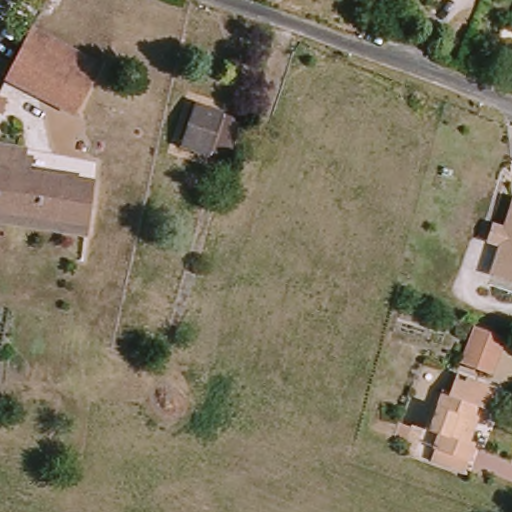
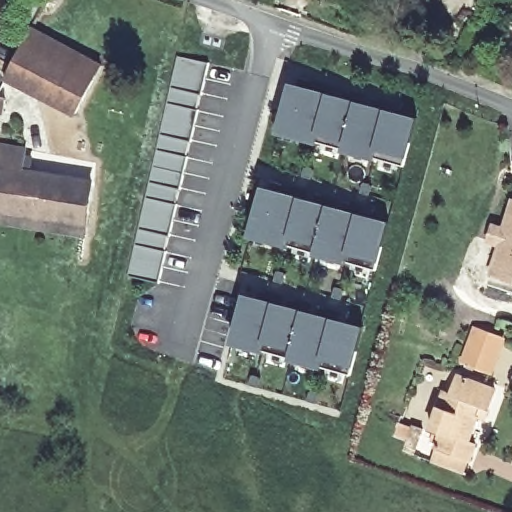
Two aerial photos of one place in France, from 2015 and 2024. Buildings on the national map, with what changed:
unchanged [(32,30),(84,58),(75,76),(24,49),(32,30)]
unchanged [(76,119),(6,83),(24,49),(75,76),(84,58),(102,68),(76,119)]
new [(177,56),(207,64),(156,283),(127,277),(177,56)]
new [(279,131),(285,110),(289,112),(296,86),(330,94),(329,97),(340,100),(340,97),(358,102),(358,105),(368,108),(370,105),(389,110),(388,113),(398,115),(400,113),(418,118),(406,164),(317,141),(302,137),(279,131)]
unchanged [(5,98),(0,111),(0,96),(5,98)]
demolished [(230,157),(210,151),(210,154),(184,145),(196,104),(222,112),(221,117),(240,123),(230,157)]
unchanged [(0,150),(24,153),(21,174),(91,185),(86,222),(0,208),(0,153),(0,150)]
new [(252,235),(257,215),(262,216),(268,190),(302,199),(302,201),(312,204),(313,201),(331,206),(331,209),(342,211),(342,209),(361,214),(361,216),(372,220),(372,216),(391,221),(379,268),(290,245),(275,241),(252,235)]
unchanged [(490,268),(500,238),(495,237),(489,235),(493,220),(500,222),(505,224),(512,203),(512,286),(487,278),(490,268)]
unchanged [(84,238),(0,227),(0,208),(86,222),(84,238)]
new [(246,299),(259,302),(260,299),(280,304),(278,307),(290,309),(290,307),(308,311),(308,314),(318,317),(319,314),(338,319),(338,322),(348,325),(349,322),(366,327),(355,374),(235,342),(246,299)]
demolished [(141,334),(144,330),(156,334),(150,352),(137,347),(139,344),(122,337),(125,327),(141,334)]
unchanged [(475,328),(504,338),(493,369),(492,371),(463,362),(465,359),(475,328)]
unchanged [(500,393),(490,423),(483,420),(474,446),(481,448),(476,463),(472,462),(467,476),(440,466),(444,454),(439,453),(441,446),(437,444),(441,434),(436,433),(450,395),(457,399),(464,380),(500,393)]
unchanged [(415,445),(401,441),(405,429),(418,434),(420,430),(427,433),(419,459),(410,456),(415,445)]

